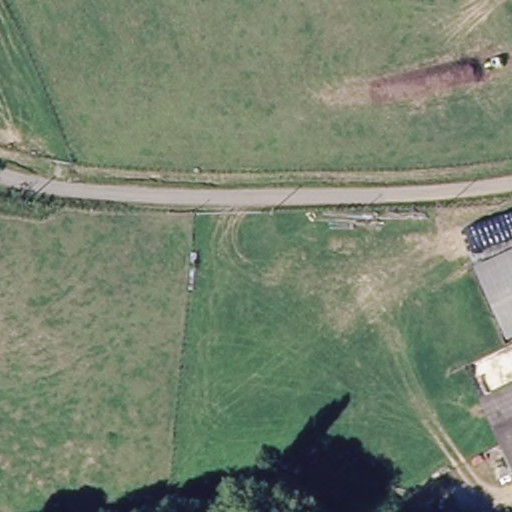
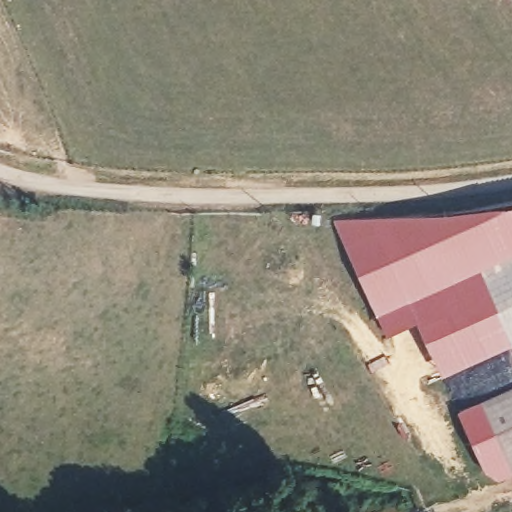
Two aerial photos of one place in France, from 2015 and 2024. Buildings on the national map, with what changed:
new [(408,300),(417,320),(386,334),(376,314),(332,220),(407,215),(443,213),(484,207),(503,205),(512,203),(512,251),(408,300)]
new [(442,372),(408,300),(512,251),(512,341),(442,372)]
unchanged [(483,400),(512,387),(512,459),(483,400)]
new [(512,459),(512,475),(500,481),(484,472),(458,411),(483,400),(512,459)]

